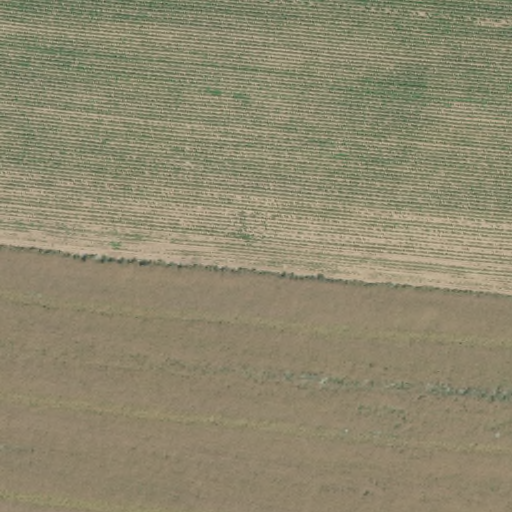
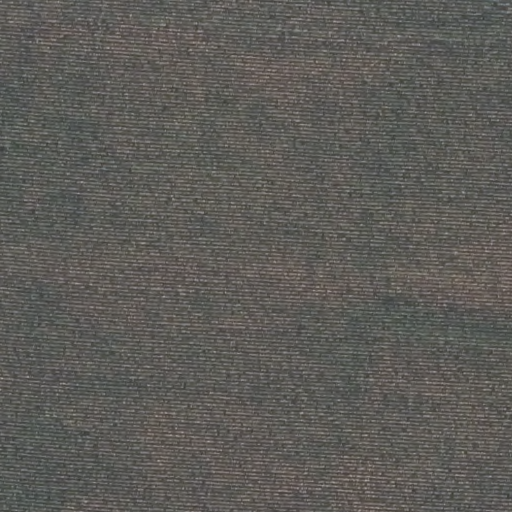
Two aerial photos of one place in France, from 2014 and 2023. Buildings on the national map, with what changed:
[]

